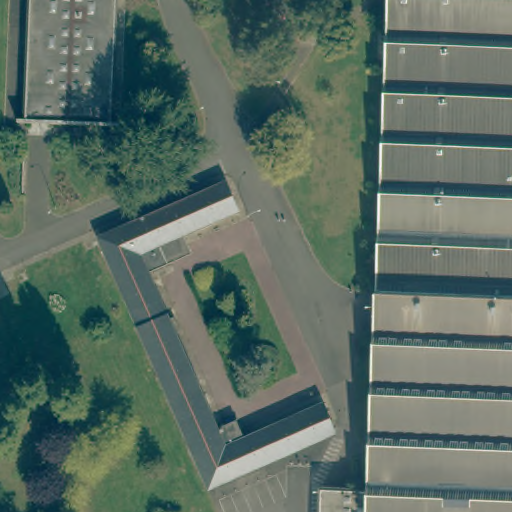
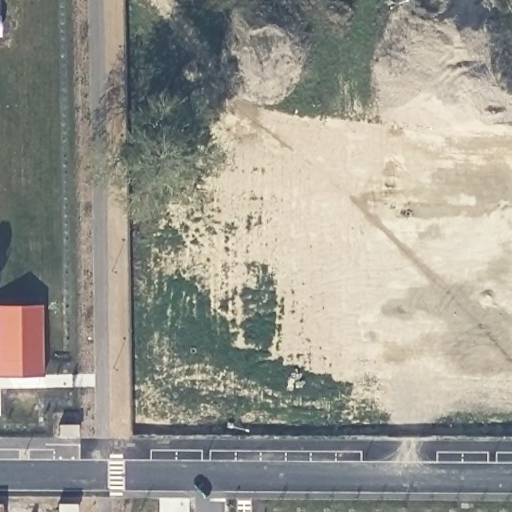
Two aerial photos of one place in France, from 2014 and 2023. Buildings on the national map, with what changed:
demolished [(19,121),(19,118),(27,119),(32,0),(117,0),(113,122),(119,123),(119,125),(19,121)]
demolished [(322,512),(323,486),(369,487),(379,220),(363,219),(361,242),(315,239),(322,57),(369,59),(368,74),(385,75),(388,0),(512,0),(512,512),(322,512)]
demolished [(0,203),(0,174),(10,199),(0,203)]
demolished [(95,232),(220,178),(232,207),(180,229),(162,237),(154,240),(162,258),(163,259),(144,267),(164,314),(170,311),(175,324),(170,327),(212,422),(232,415),(240,432),(317,398),(329,427),(205,482),(107,260),(102,247),(95,232)]
demolished [(56,348),(51,351),(39,356),(36,349),(33,342),(17,349),(0,311),(0,289),(5,287),(16,282),(86,252),(87,254),(93,266),(111,308),(42,338),(45,344),(53,341),(56,348)]
new [(8,377),(0,378),(0,299),(10,299),(8,377)]

